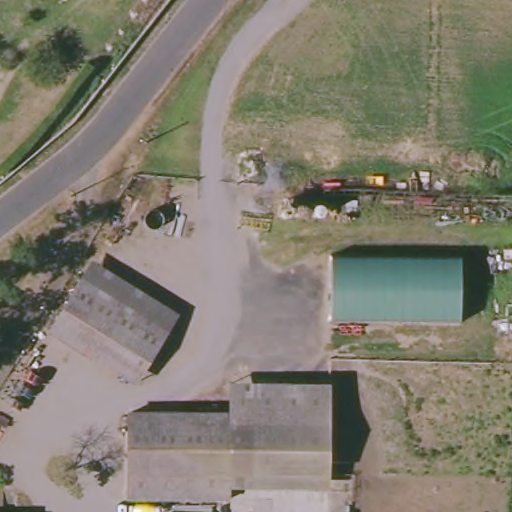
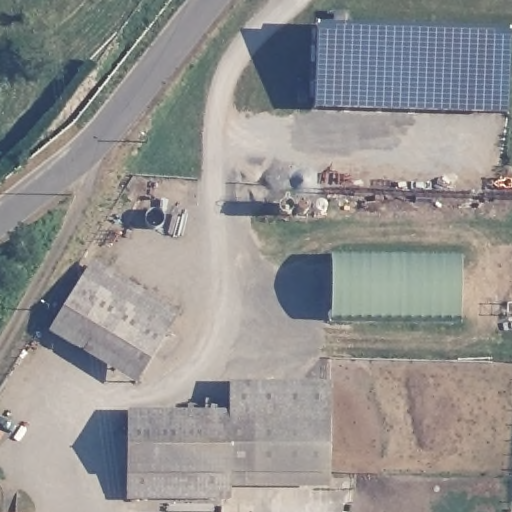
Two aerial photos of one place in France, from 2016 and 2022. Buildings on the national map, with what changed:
new [(508,116),(313,110),(317,25),(510,30),(508,116)]
new [(282,218),(280,216),(278,214),(278,211),(278,209),(280,207),(282,206),(286,204),(290,204),(293,207),(295,208),(297,208),(301,206),(303,206),(320,205),(323,205),(327,207),(327,210),(325,213),(323,215),(321,217),(317,218),(297,217),(285,219),(282,218)]
unchanged [(462,323),(333,321),(334,256),(462,258),(462,323)]
unchanged [(58,327),(95,267),(178,318),(172,328),(141,377),(60,328),(58,327)]
unchanged [(237,385),(332,381),(335,483),(242,488),(237,413),(237,385)]
unchanged [(242,488),(138,493),(136,418),(237,413),(242,488)]

